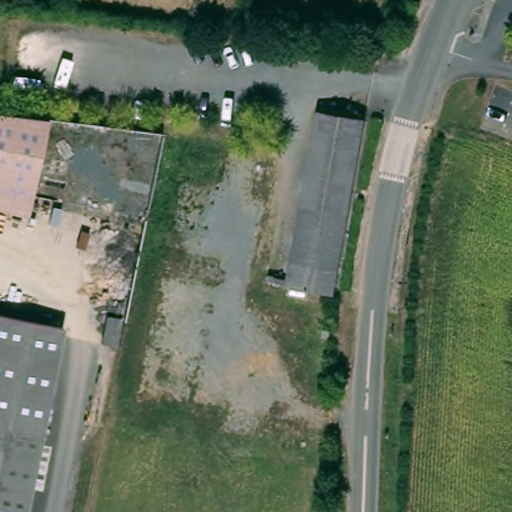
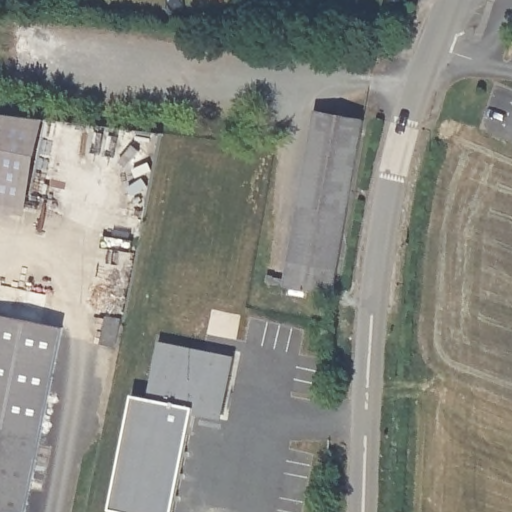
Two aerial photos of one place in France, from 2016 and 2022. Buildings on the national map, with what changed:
unchanged [(324,112),(370,120),(338,293),(291,285),(277,282),(269,280),(270,274),(278,275),(293,278),(324,112)]
unchanged [(46,120),(27,214),(0,208),(0,114),(46,120)]
unchanged [(67,326),(30,512),(3,512),(0,511),(0,313),(67,326)]
new [(134,395),(149,398),(161,341),(235,355),(223,420),(193,414),(175,512),(123,512),(111,510),(134,395)]
demolished [(143,395),(148,369),(201,380),(196,405),(143,395)]

